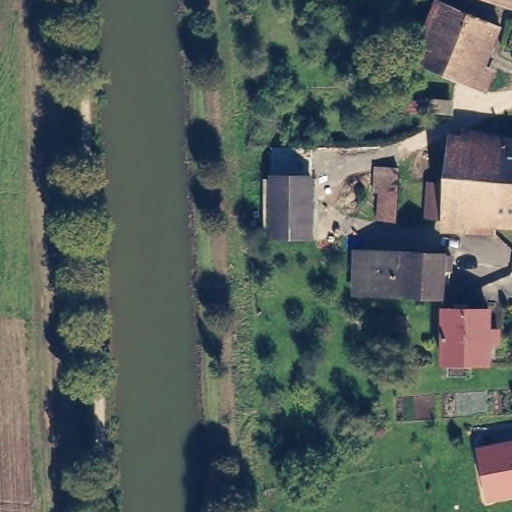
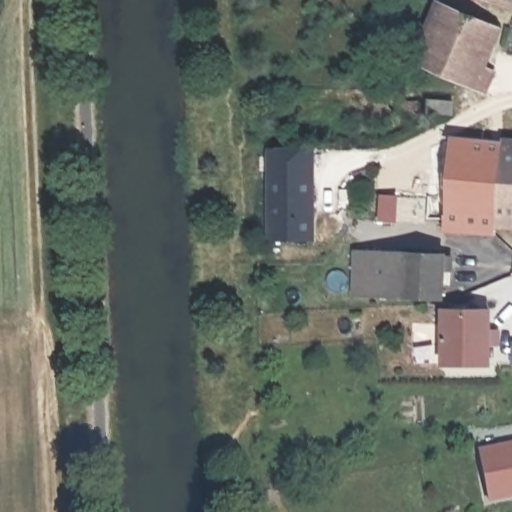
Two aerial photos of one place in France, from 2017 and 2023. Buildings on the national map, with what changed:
unchanged [(507,5),(491,0),(508,0),(507,5)]
unchanged [(495,75),(485,98),(415,68),(440,8),(499,33),(490,52),(483,70),(495,75)]
unchanged [(450,114),(427,112),(427,98),(450,99),(450,114)]
unchanged [(444,225),(444,214),(427,212),(428,178),(446,178),(448,133),(501,136),(495,219),(495,227),(444,225)]
unchanged [(495,219),(501,136),(512,137),(512,220),(495,219)]
unchanged [(380,195),(375,194),(377,169),(397,170),(395,220),(378,220),(380,195)]
unchanged [(272,178),(312,179),(312,238),(272,238),(272,178)]
unchanged [(352,294),(353,253),(438,256),(447,256),(446,270),(438,270),(437,297),(352,294)]
unchanged [(445,322),(455,322),(455,312),(470,313),(470,322),(490,322),(490,341),(498,341),(498,353),(490,353),(490,374),(462,374),(443,374),(445,322)]
unchanged [(486,502),(475,448),(512,441),(512,497),(486,502)]

